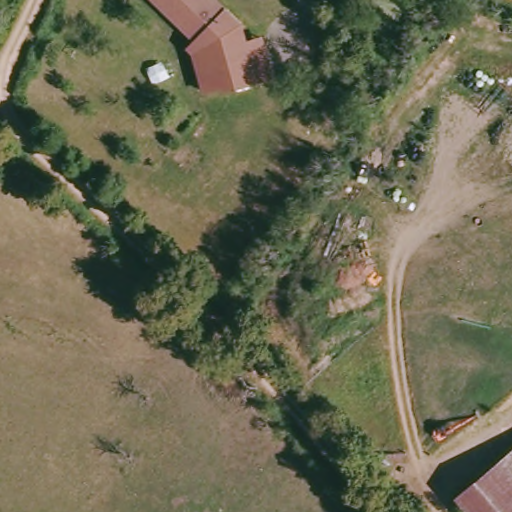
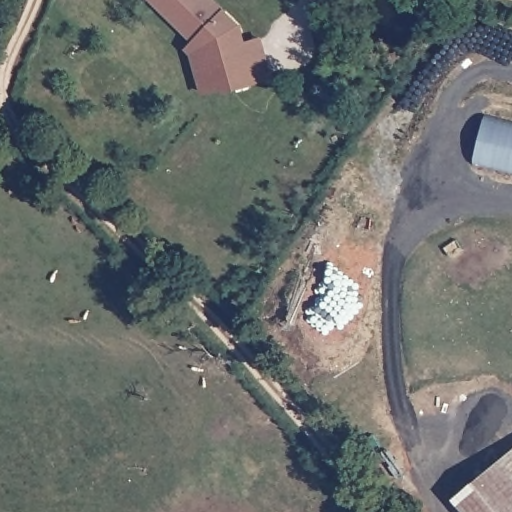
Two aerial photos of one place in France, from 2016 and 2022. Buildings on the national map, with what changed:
unchanged [(277,75),(203,97),(189,46),(199,39),(155,0),(221,0),(247,25),(250,38),(267,32),(277,75)]
new [(512,123),(512,170),(477,160),(486,117),(512,123)]
unchanged [(512,448),(512,512),(470,512),(456,496),(512,448)]

